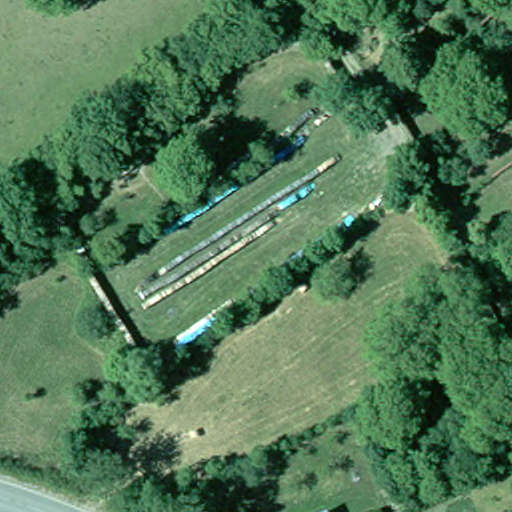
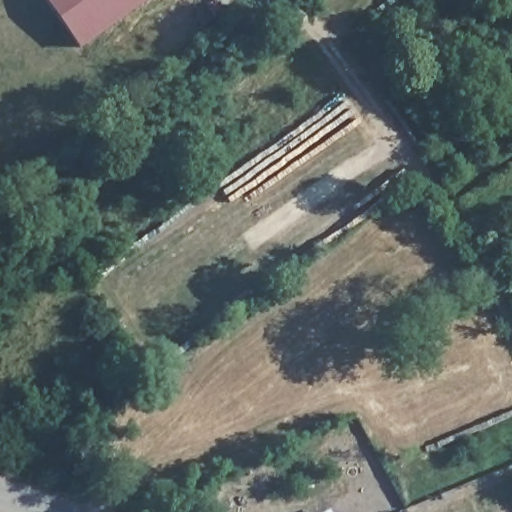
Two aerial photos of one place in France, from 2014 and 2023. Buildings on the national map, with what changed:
new [(46,0),(142,0),(78,45),(46,0)]

